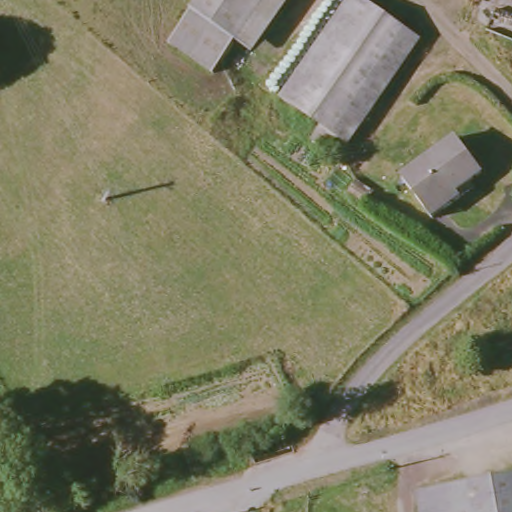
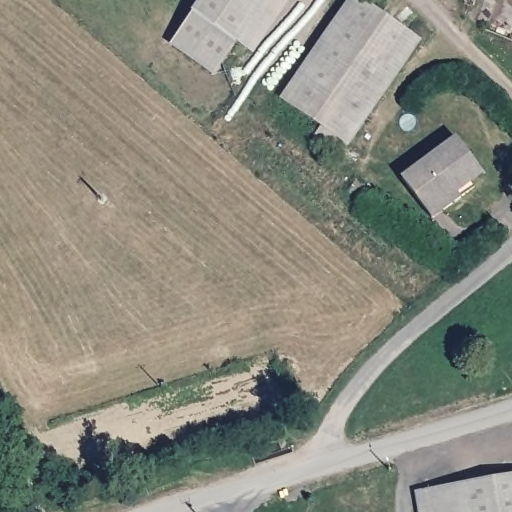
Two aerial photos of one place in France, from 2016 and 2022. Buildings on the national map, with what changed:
unchanged [(259,0),(231,41),(232,41),(209,75),(165,44),(195,0),(259,0)]
unchanged [(232,41),(231,41),(259,0),(287,0),(250,54),(232,41)]
unchanged [(337,157),(313,140),(322,127),(281,99),(349,0),(362,0),(420,40),(337,157)]
unchanged [(482,172),(470,181),(475,187),(432,219),(402,179),(457,138),(482,172)]
unchanged [(417,492),(512,475),(512,512),(420,512),(417,492)]

